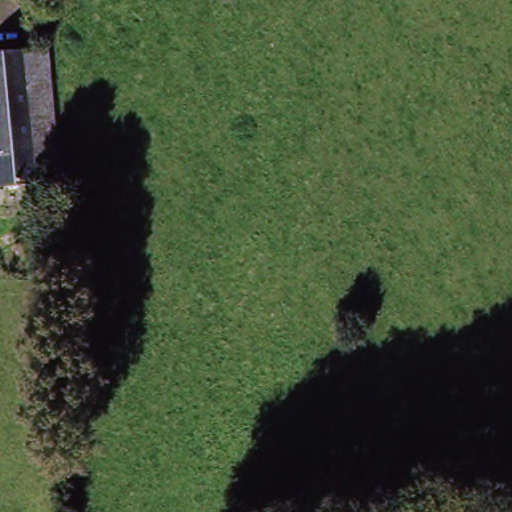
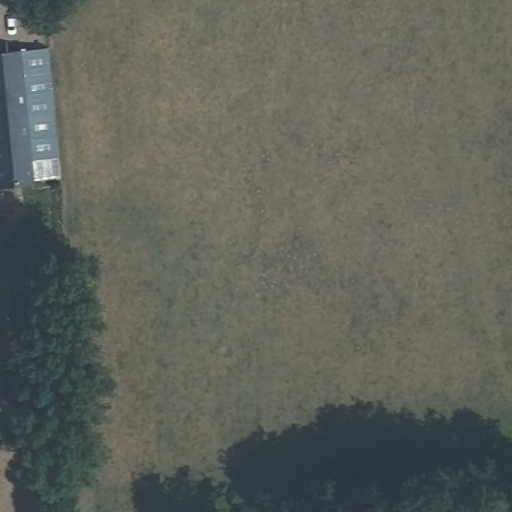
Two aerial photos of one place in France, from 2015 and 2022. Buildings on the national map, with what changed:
unchanged [(0,182),(0,54),(48,50),(60,176),(0,182)]

